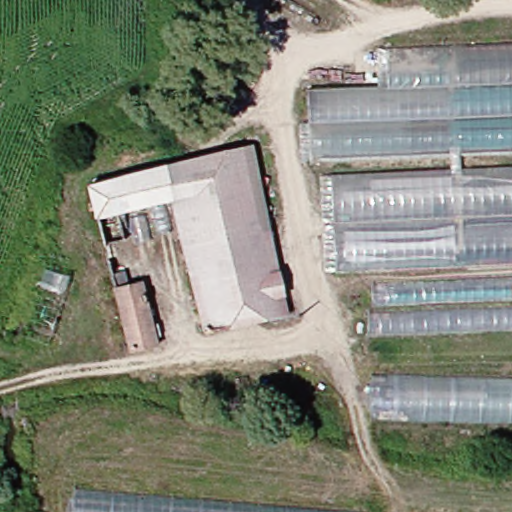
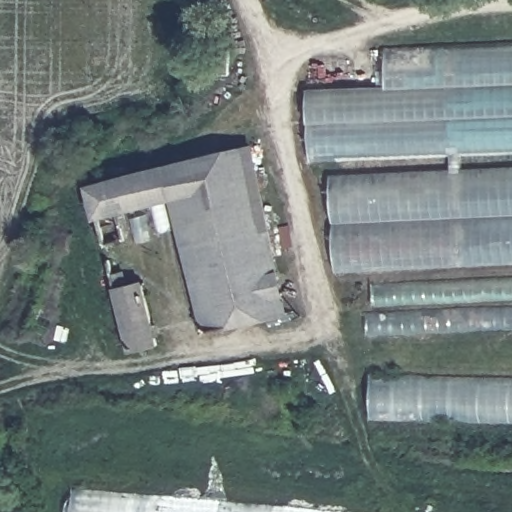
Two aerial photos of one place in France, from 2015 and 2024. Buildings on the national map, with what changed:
unchanged [(512,41),(512,262),(324,267),(316,155),(300,155),(296,88),(381,89),(381,44),(512,41)]
unchanged [(196,326),(160,194),(113,204),(123,255),(100,259),(85,181),(244,144),(287,303),(196,326)]
unchanged [(512,278),(512,330),(369,336),(367,311),(372,310),(371,284),(512,278)]
unchanged [(123,351),(105,285),(134,280),(152,345),(123,351)]
unchanged [(360,413),(360,371),(512,378),(512,419),(360,413)]
unchanged [(368,512),(66,512),(68,488),(368,512)]

